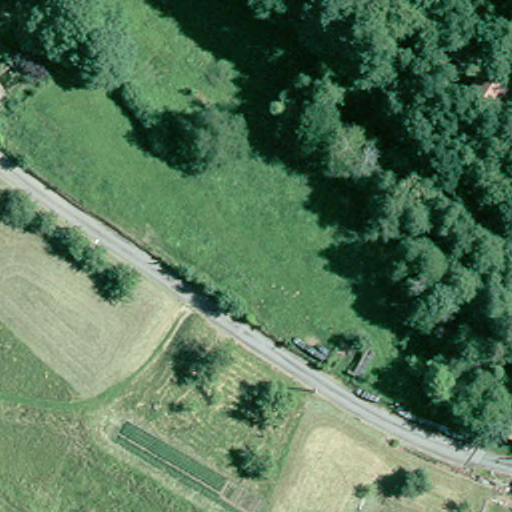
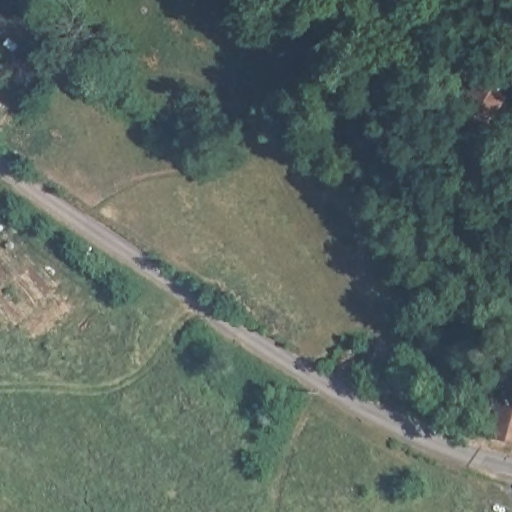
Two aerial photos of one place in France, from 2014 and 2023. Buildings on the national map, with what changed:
unchanged [(512,93),(512,97),(497,119),(468,100),(482,77),(512,93)]
unchanged [(7,108),(0,114),(0,100),(1,101),(7,108)]
unchanged [(497,427),(507,400),(512,402),(512,435),(510,435),(497,427)]

